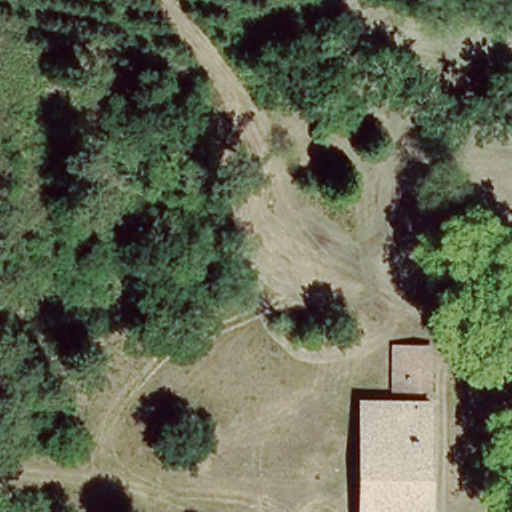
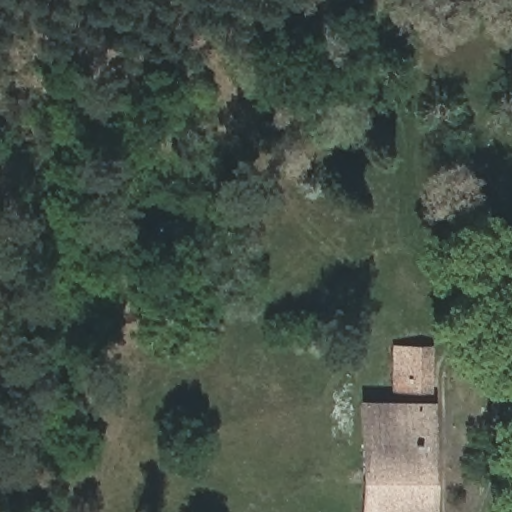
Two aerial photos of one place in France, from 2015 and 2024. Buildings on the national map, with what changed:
unchanged [(429,347),(428,389),(428,392),(405,394),(405,384),(391,383),(391,345),(429,347)]
unchanged [(422,509),(422,512),(359,512),(358,403),(423,402),(423,428),(422,509)]

